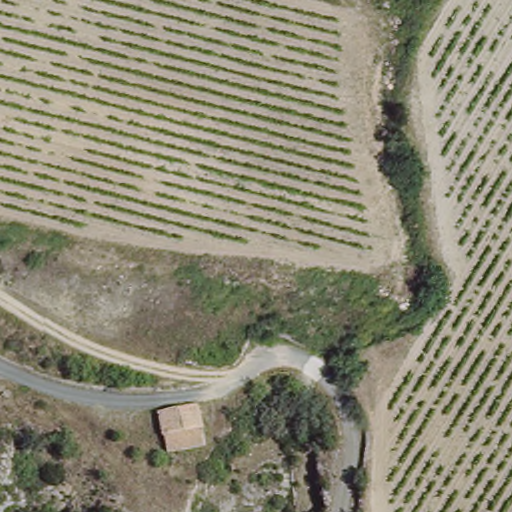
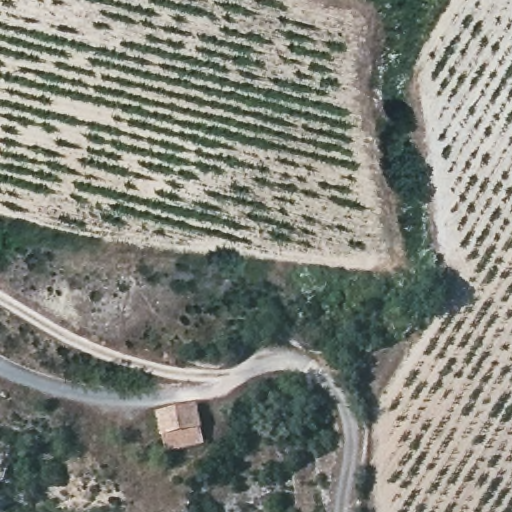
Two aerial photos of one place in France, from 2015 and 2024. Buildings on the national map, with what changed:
unchanged [(200,442),(163,452),(152,413),(190,403),(200,442)]

